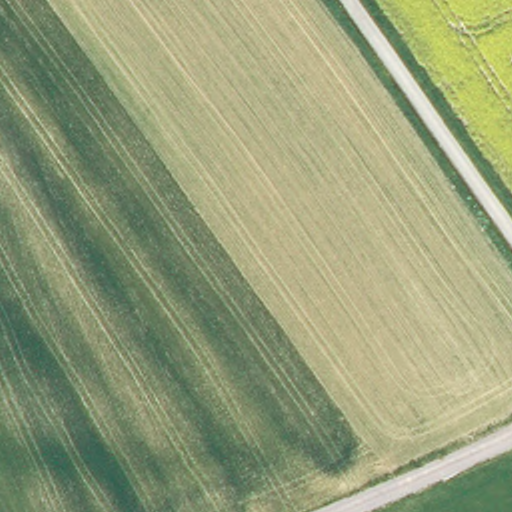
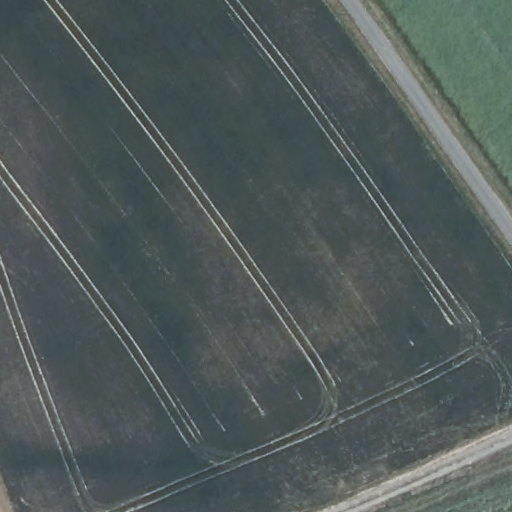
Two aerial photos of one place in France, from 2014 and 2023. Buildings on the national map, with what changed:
[]

